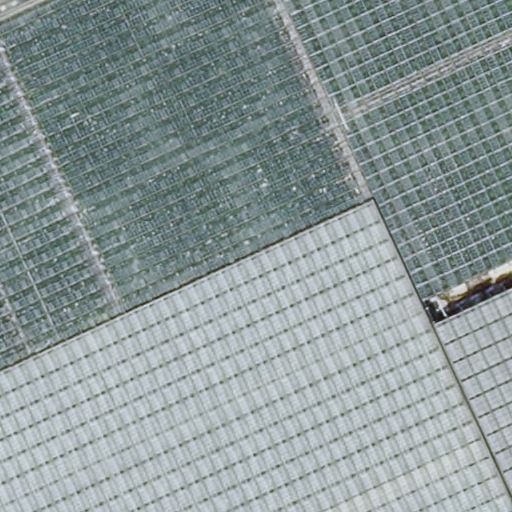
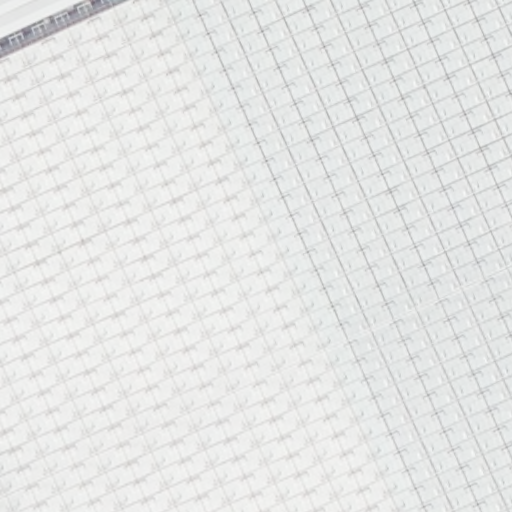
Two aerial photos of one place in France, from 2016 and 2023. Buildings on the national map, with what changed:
unchanged [(424,300),(434,321),(512,284),(512,512),(0,512),(0,0),(512,0),(512,259),(424,300)]

